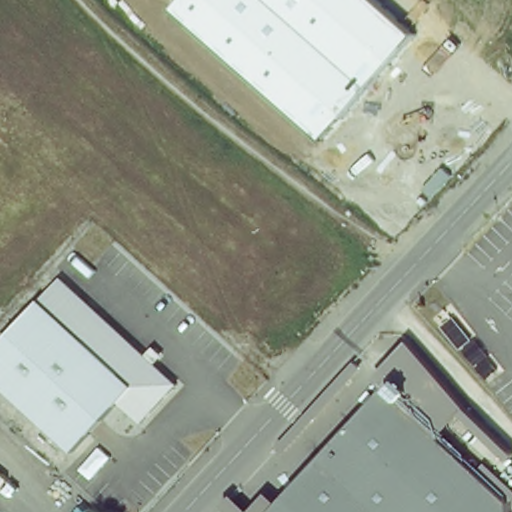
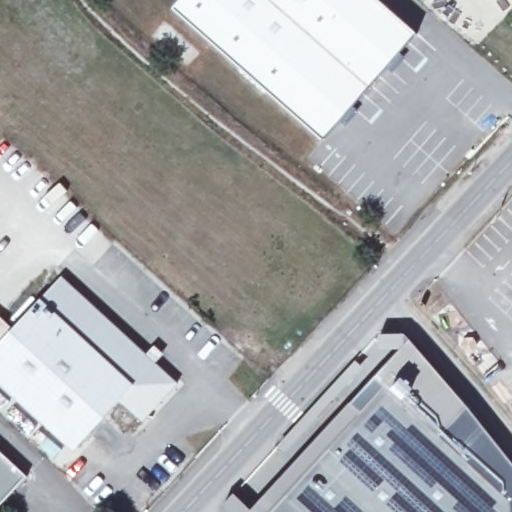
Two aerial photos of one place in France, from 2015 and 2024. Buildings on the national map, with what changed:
unchanged [(378,0),(418,35),(328,140),(174,8),(181,0),(378,0)]
unchanged [(151,361),(159,352),(168,361),(160,370),(182,390),(147,428),(124,407),(78,457),(0,384),(0,354),(67,283),(151,361)]
unchanged [(469,406),(512,447),(512,463),(464,414),(443,437),(382,380),(380,382),(412,340),(469,406)]
unchanged [(382,380),(505,495),(507,512),(257,512),(382,380)]
new [(24,476),(0,499),(0,454),(24,476)]

